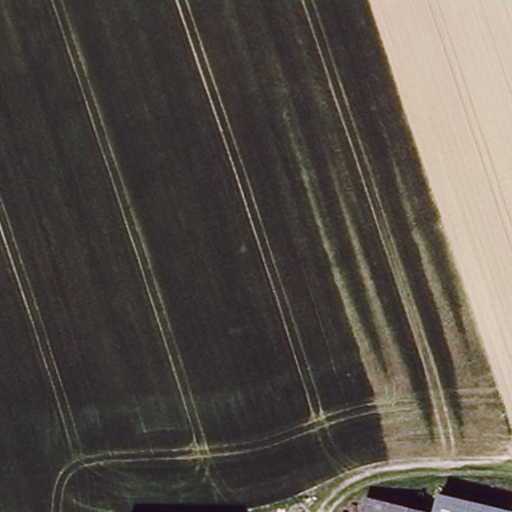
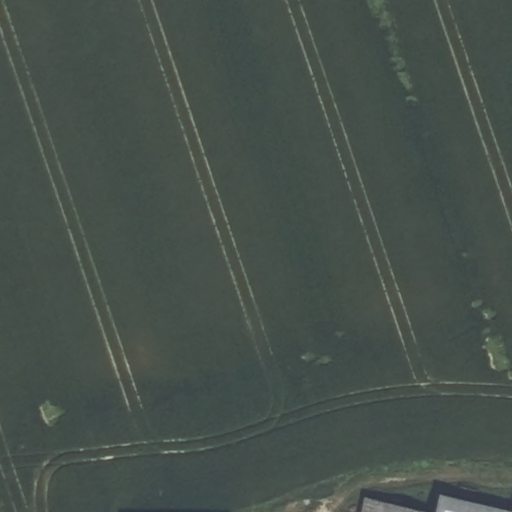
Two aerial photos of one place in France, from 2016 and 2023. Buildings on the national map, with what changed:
unchanged [(435,510),(440,493),(511,509),(510,512),(435,512),(435,510)]
unchanged [(365,495),(435,510),(435,512),(362,512),(365,495)]
unchanged [(511,509),(512,504),(512,512),(510,512),(511,509)]

